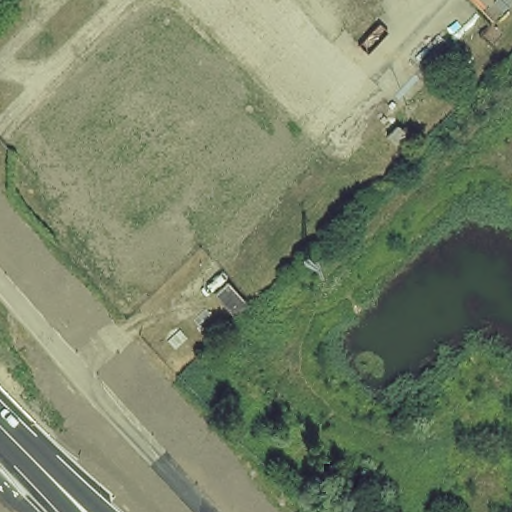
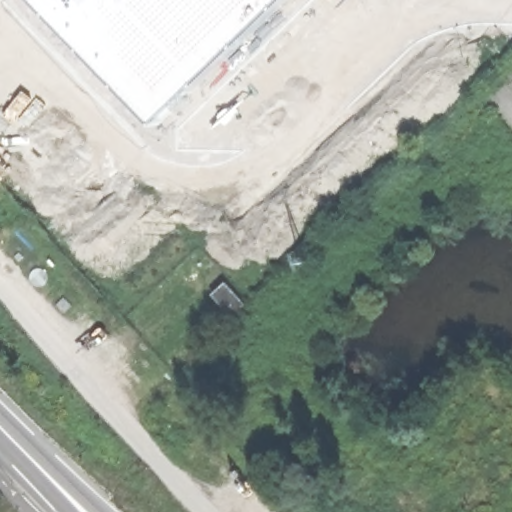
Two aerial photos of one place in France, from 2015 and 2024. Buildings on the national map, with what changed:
new [(158,123),(41,0),(285,0),(158,123)]
new [(397,127),(404,134),(394,145),(387,137),(397,127)]
new [(225,282),(245,304),(232,315),(213,295),(225,282)]

